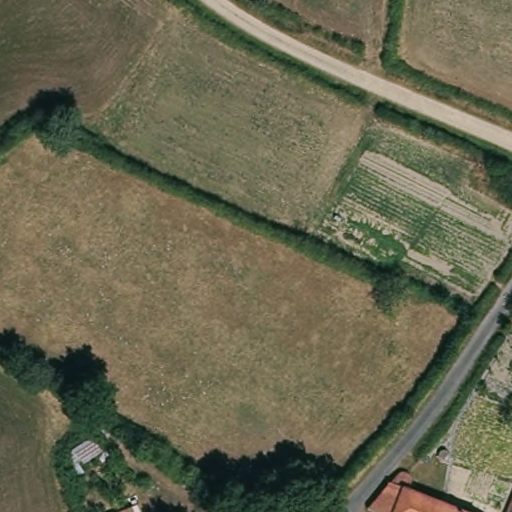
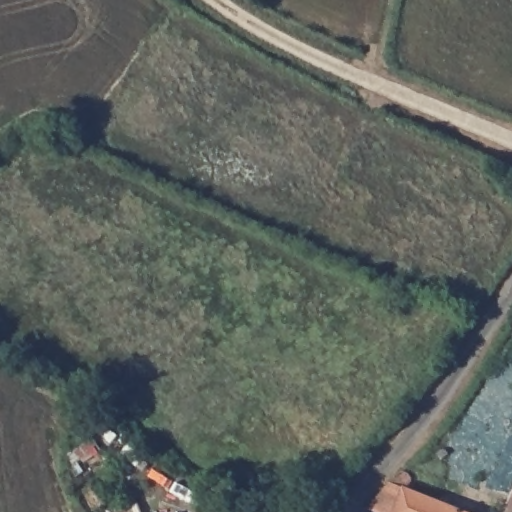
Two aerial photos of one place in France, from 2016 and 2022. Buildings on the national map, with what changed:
unchanged [(377,503),(392,484),(402,472),(410,474),(413,477),(414,483),(408,490),(465,512),(376,512),(372,510),(377,503)]
unchanged [(512,506),(512,512),(509,512),(512,506)]

